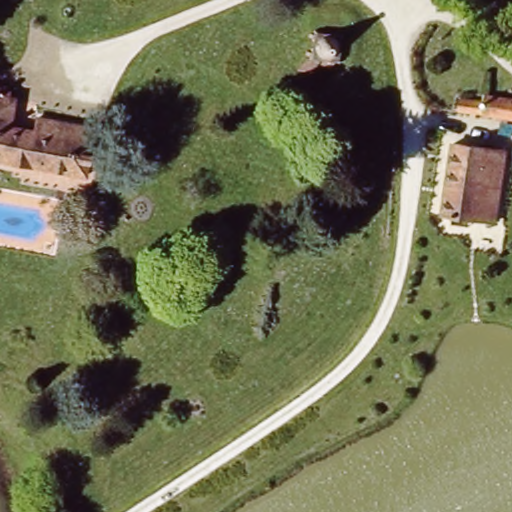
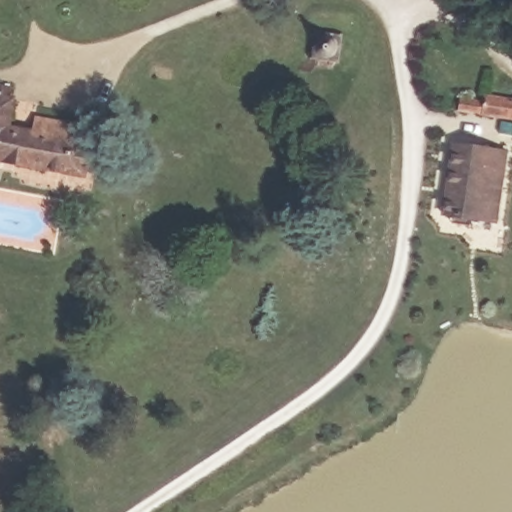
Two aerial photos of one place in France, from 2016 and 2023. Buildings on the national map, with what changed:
unchanged [(321,51),(293,49),(296,17),(325,20),(321,51)]
unchanged [(465,97),(488,99),(490,92),(512,94),(512,115),(463,109),(465,97)]
unchanged [(16,106),(12,136),(31,138),(35,124),(94,134),(87,183),(0,171),(0,102),(16,106)]
unchanged [(450,145),(490,151),(487,172),(501,174),(498,192),(487,191),(482,218),(440,212),(450,145)]

